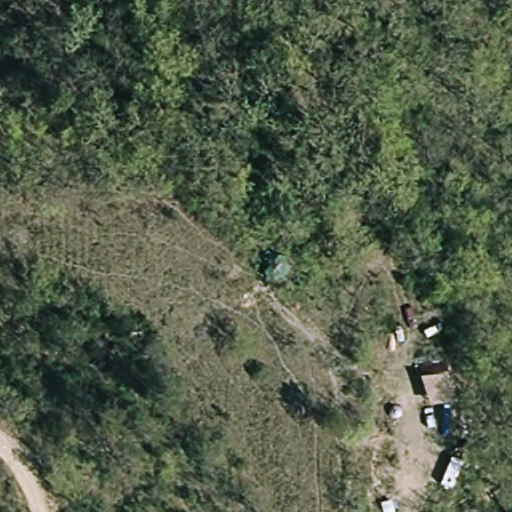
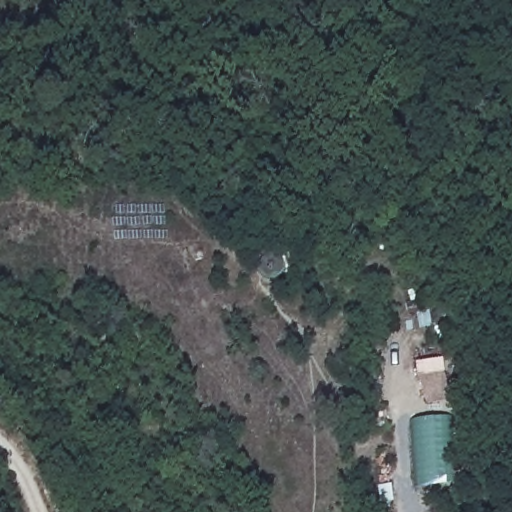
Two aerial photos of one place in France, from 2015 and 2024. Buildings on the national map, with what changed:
unchanged [(422,378),(450,372),(455,402),(430,407),(422,378)]
new [(452,417),(459,485),(420,487),(413,419),(452,417)]

